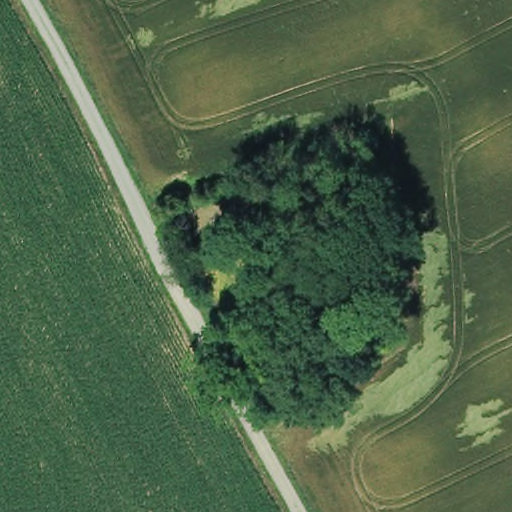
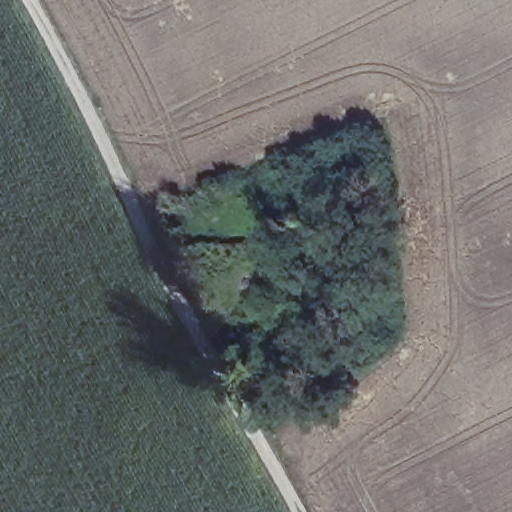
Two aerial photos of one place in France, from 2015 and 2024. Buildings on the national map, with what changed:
unchanged [(242,309),(197,306),(189,245),(272,238),(273,267),(313,270),(319,362),(255,371),(242,309)]

